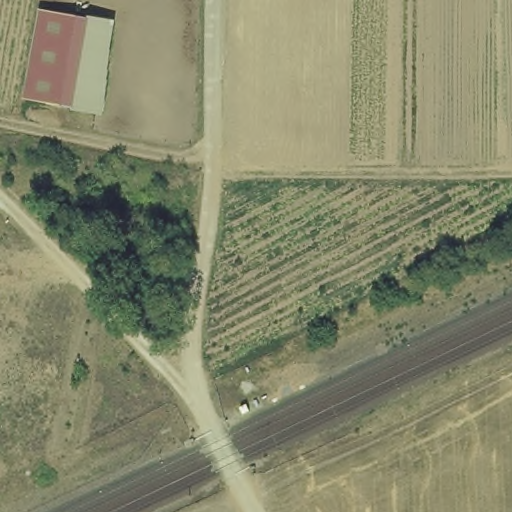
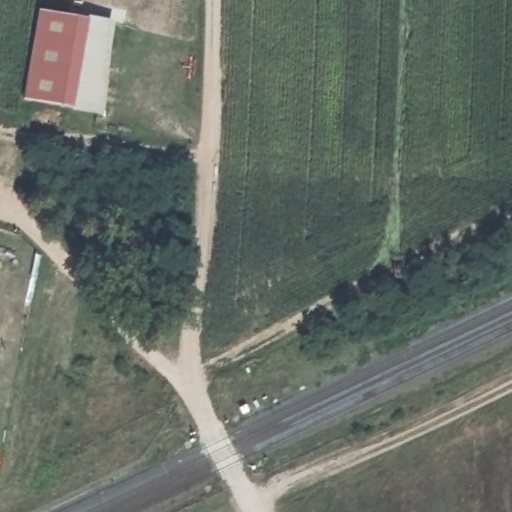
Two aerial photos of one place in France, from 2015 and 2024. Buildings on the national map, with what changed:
unchanged [(108,115),(29,99),(43,10),(122,21),(108,115)]

